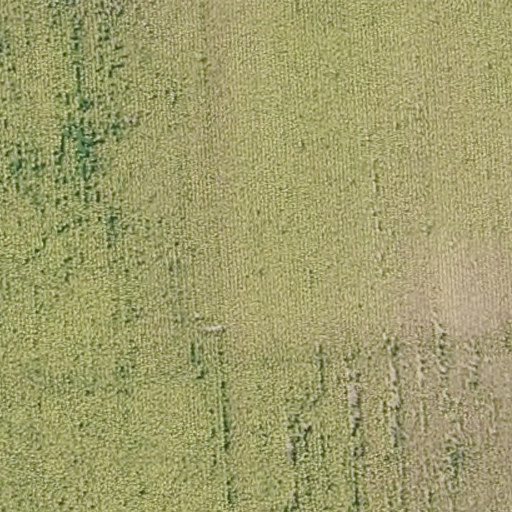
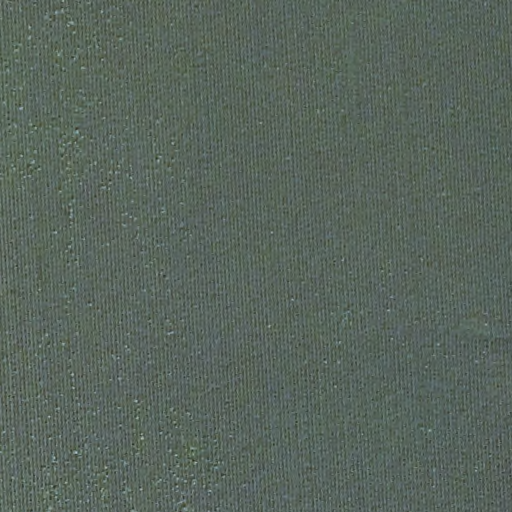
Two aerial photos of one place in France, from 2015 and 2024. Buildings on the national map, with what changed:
[]

